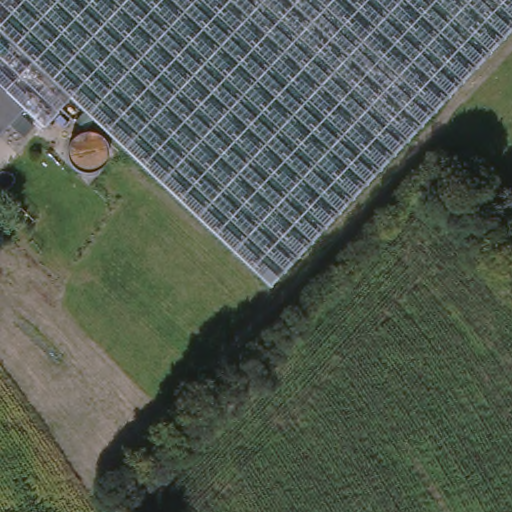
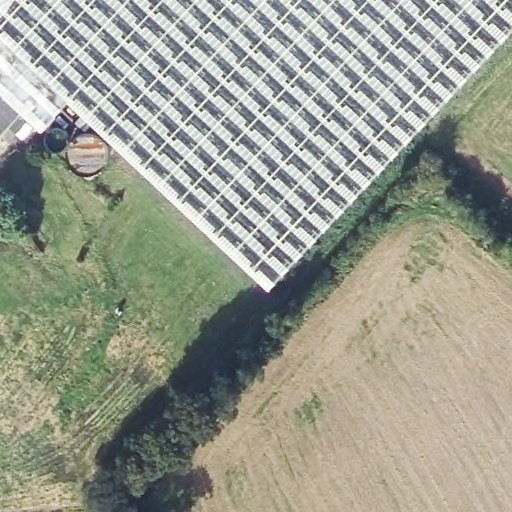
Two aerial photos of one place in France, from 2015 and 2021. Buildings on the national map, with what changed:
unchanged [(0,0),(512,0),(512,28),(268,288),(68,103),(40,132),(16,114),(0,132),(0,99),(0,0)]

